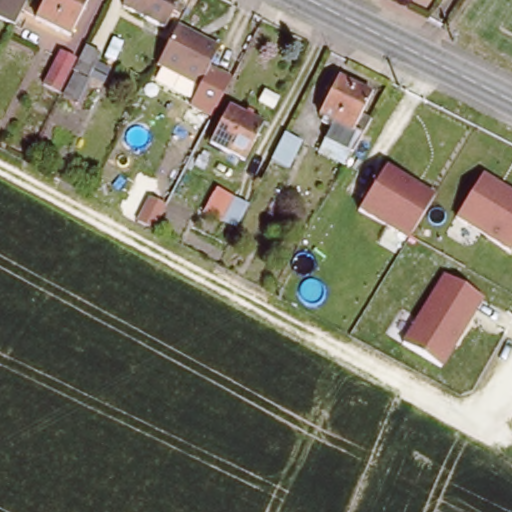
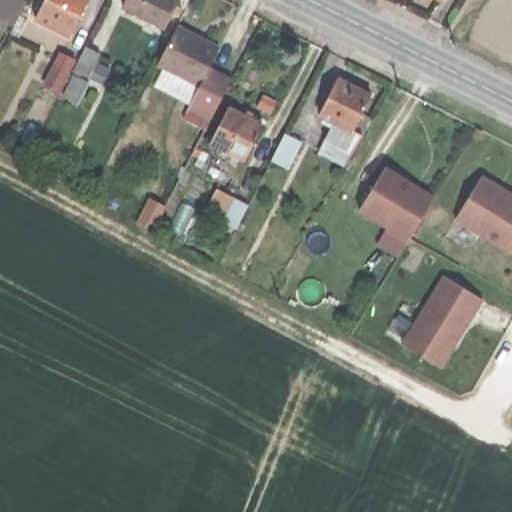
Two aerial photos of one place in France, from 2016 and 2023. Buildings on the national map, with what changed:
unchanged [(23,14),(1,1),(1,0),(32,0),(23,14)]
unchanged [(72,38),(38,17),(48,0),(95,0),(72,38)]
unchanged [(163,27),(127,11),(133,0),(176,0),(163,27)]
unchanged [(440,7),(430,0),(444,0),(440,7)]
unchanged [(224,47),(199,86),(155,65),(180,25),(224,47)]
unchanged [(59,76),(48,69),(65,40),(77,47),(59,76)]
unchanged [(90,44),(98,48),(86,68),(78,63),(90,44)]
unchanged [(354,152),(326,136),(335,120),(322,112),(338,82),(373,101),(357,131),(364,135),(354,152)]
unchanged [(244,164),(210,145),(232,107),(265,127),(244,164)]
unchanged [(295,127),(307,135),(292,158),(280,151),(295,127)]
unchanged [(440,197),(412,242),(361,209),(387,164),(440,197)]
unchanged [(483,174),(512,192),(512,252),(511,254),(455,220),(483,174)]
unchanged [(237,221),(207,202),(221,179),(252,197),(237,221)]
unchanged [(446,273),(486,301),(442,370),(402,343),(446,273)]

